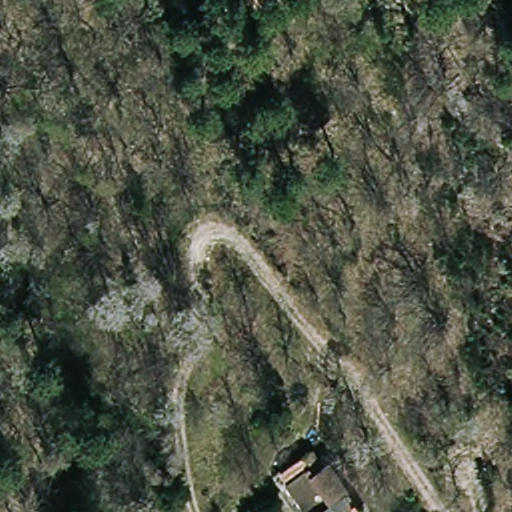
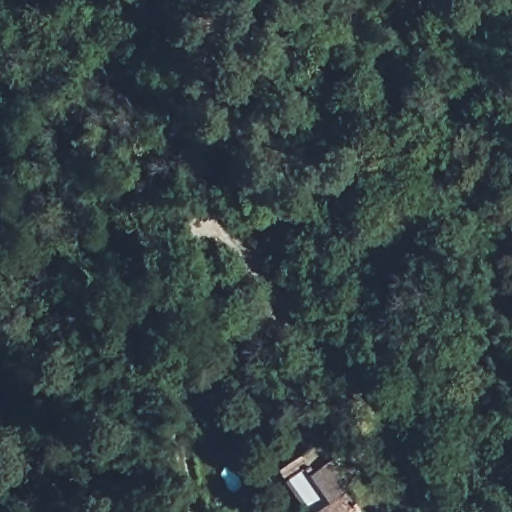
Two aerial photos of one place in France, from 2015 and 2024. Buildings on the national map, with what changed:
unchanged [(292,451),(295,450),(303,464),(323,453),(340,483),(302,506),(285,477),(274,459),(278,450),(275,446),(285,441),(292,451)]
unchanged [(355,509),(351,512),(305,512),(302,506),(340,483),(355,509)]

